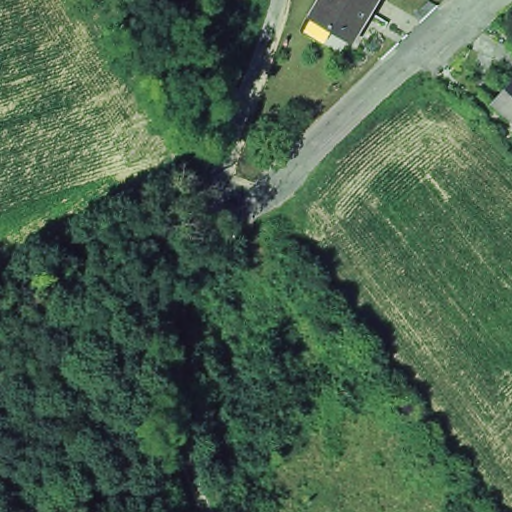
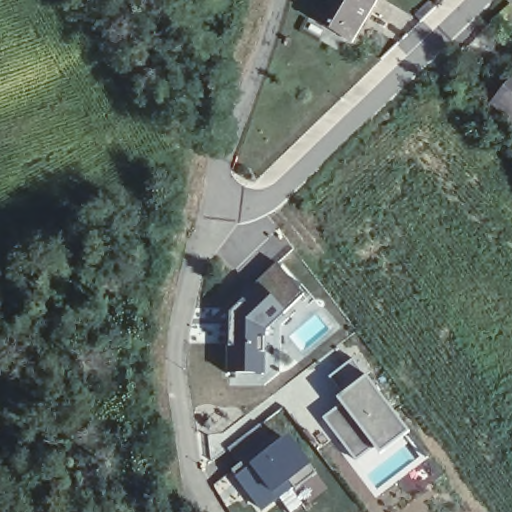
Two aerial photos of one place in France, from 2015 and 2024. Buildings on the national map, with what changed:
unchanged [(313,19),(325,0),(378,0),(351,43),(313,19)]
unchanged [(505,108),(512,99),(512,114),(505,108)]
new [(301,293),(263,331),(264,377),(224,374),(222,316),(242,295),(255,283),(276,265),(301,293)]
new [(346,401),(328,378),(352,360),(402,426),(356,461),(331,430),(324,419),(327,416),(346,401)]
new [(278,435),(288,449),(294,445),(316,474),(295,491),(288,481),(274,492),(278,497),(261,510),(242,486),(247,483),(243,477),(238,481),(231,471),(278,435)]

